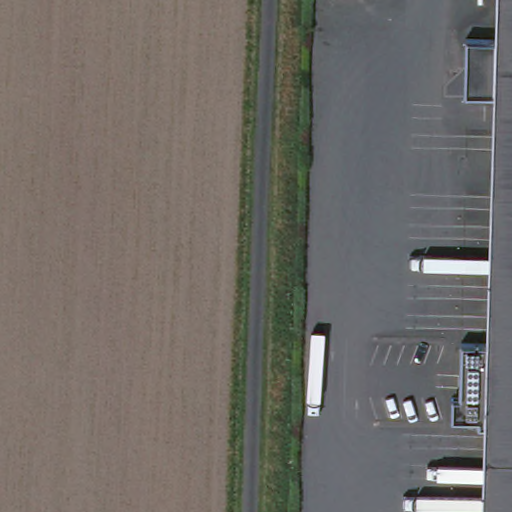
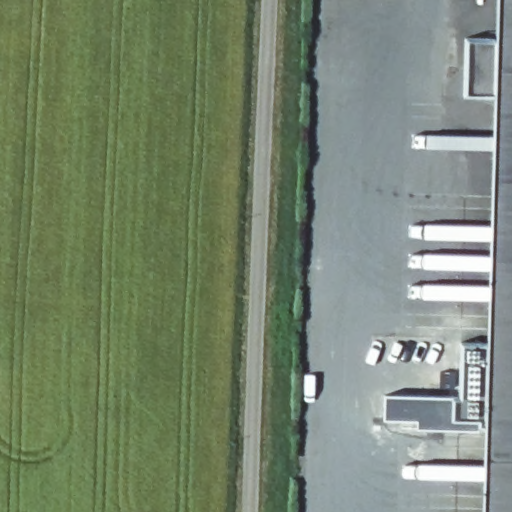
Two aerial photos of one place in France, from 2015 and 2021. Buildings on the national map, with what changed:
unchanged [(496,0),(512,0),(512,62),(493,61),(495,34),(496,0)]
unchanged [(449,420),(448,392),(460,390),(460,339),(485,337),(493,92),(459,92),(459,34),(495,34),(493,61),(512,62),(512,512),(484,512),(486,421),(449,420)]

